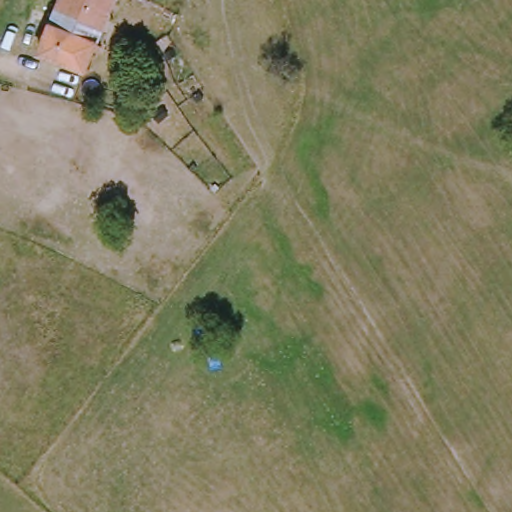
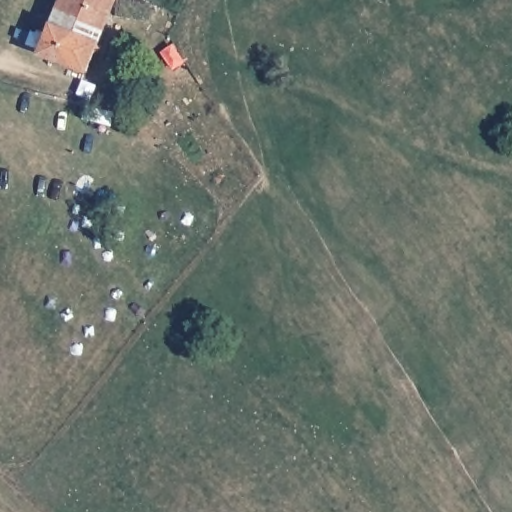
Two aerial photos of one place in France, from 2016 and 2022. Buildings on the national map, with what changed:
unchanged [(87,71),(36,53),(50,20),(58,0),(115,0),(98,41),(87,71)]

